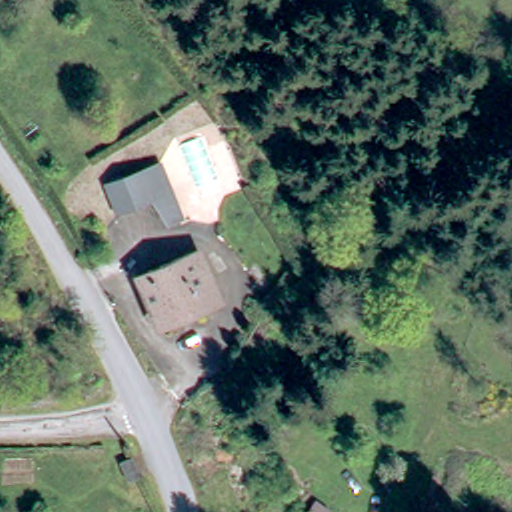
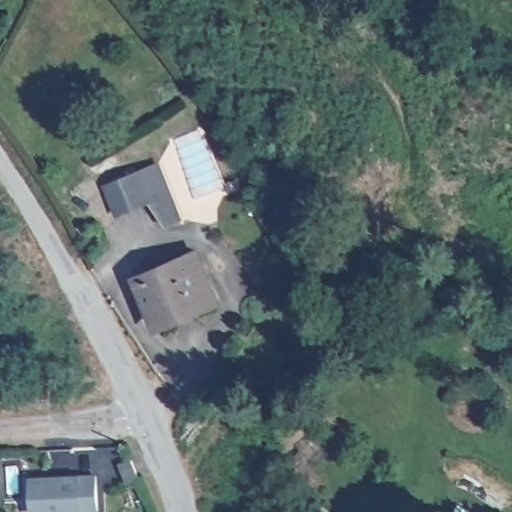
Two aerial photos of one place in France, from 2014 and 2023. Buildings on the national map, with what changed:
unchanged [(185,215),(162,227),(151,201),(118,217),(104,183),(159,158),(185,215)]
unchanged [(198,251),(218,300),(162,325),(156,308),(151,310),(140,285),(144,283),(141,275),(198,251)]
unchanged [(129,485),(119,467),(132,461),(141,480),(129,485)]
new [(99,474),(101,512),(33,512),(32,477),(83,475),(99,474)]

